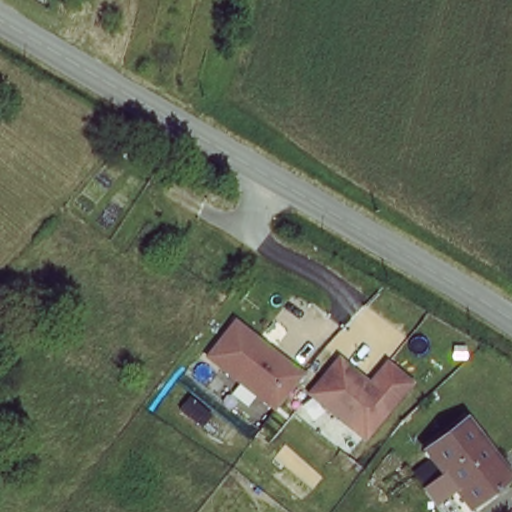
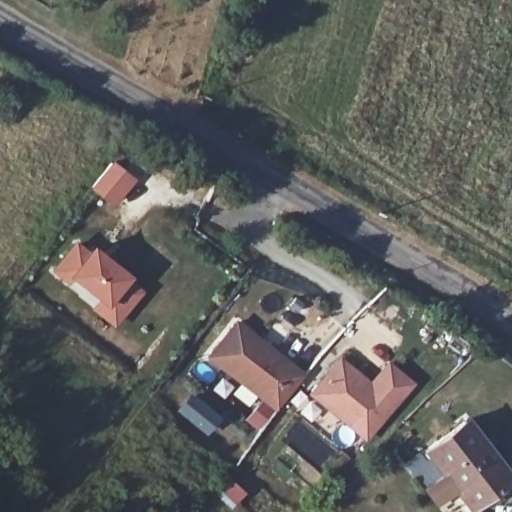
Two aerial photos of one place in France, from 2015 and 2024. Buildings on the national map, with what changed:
new [(114,207),(90,189),(111,162),(135,179),(114,207)]
new [(75,239),(88,250),(92,245),(132,276),(130,279),(145,292),(115,328),(92,309),(97,298),(71,278),(68,284),(50,269),(75,239)]
unchanged [(212,358),(237,324),(307,376),(280,411),(212,358)]
unchanged [(347,361),(378,386),(395,365),(418,384),(375,439),(320,395),(347,361)]
unchanged [(510,479),(472,506),(430,446),(467,419),(510,479)]

